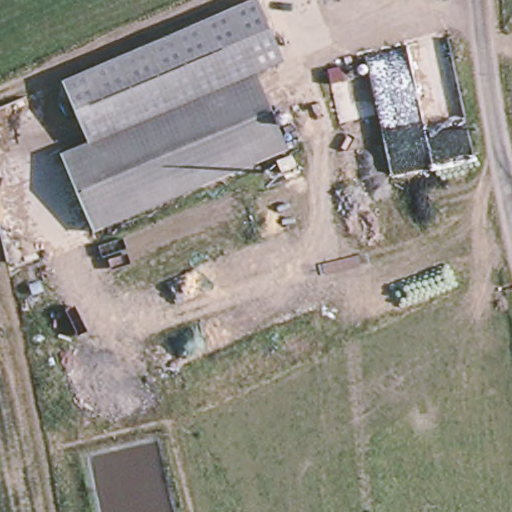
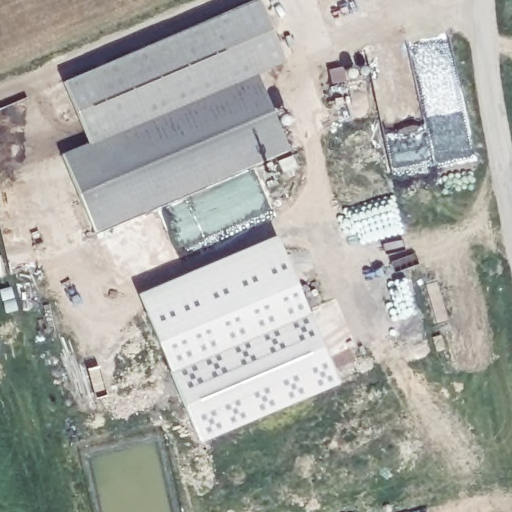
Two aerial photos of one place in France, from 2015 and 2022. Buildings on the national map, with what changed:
unchanged [(255,76),(253,73),(117,130),(87,143),(65,83),(259,1),(287,66),(257,81),(255,76)]
unchanged [(92,233),(59,155),(87,143),(117,130),(253,73),(255,76),(257,81),(286,151),(135,214),(92,233)]
unchanged [(275,161),(290,156),(294,168),(280,173),(275,161)]
new [(281,236),(342,385),(202,444),(140,297),(281,236)]

